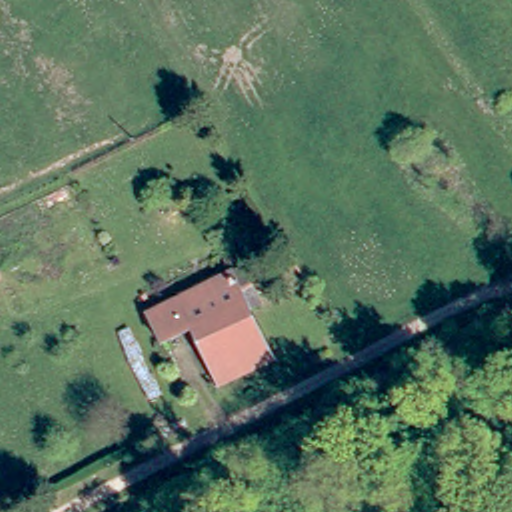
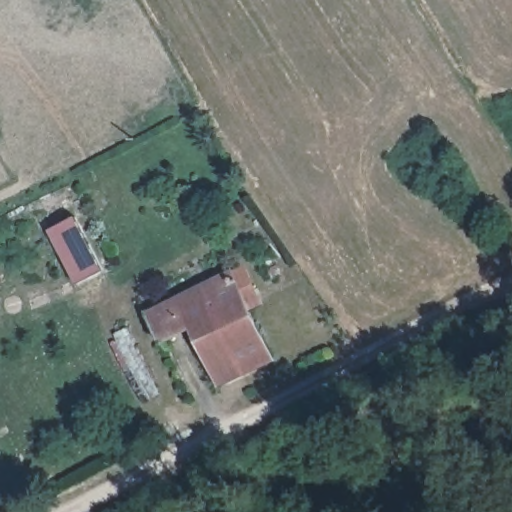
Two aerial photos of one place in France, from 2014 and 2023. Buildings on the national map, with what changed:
new [(76,217),(104,269),(76,283),(49,231),(76,217)]
unchanged [(148,313),(236,269),(255,306),(245,311),(268,355),(229,373),(203,320),(186,328),(160,339),(148,313)]
unchanged [(213,381),(186,328),(203,320),(229,373),(213,381)]

